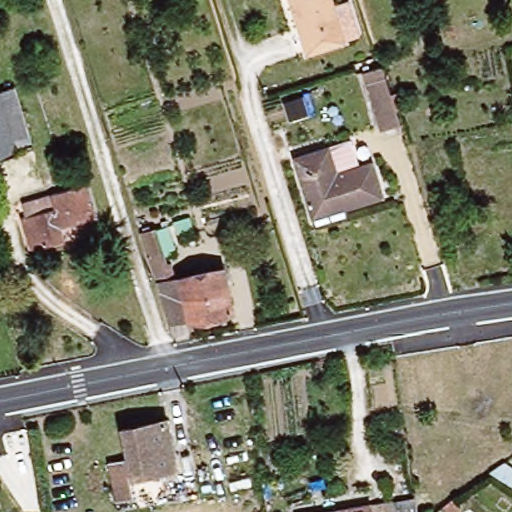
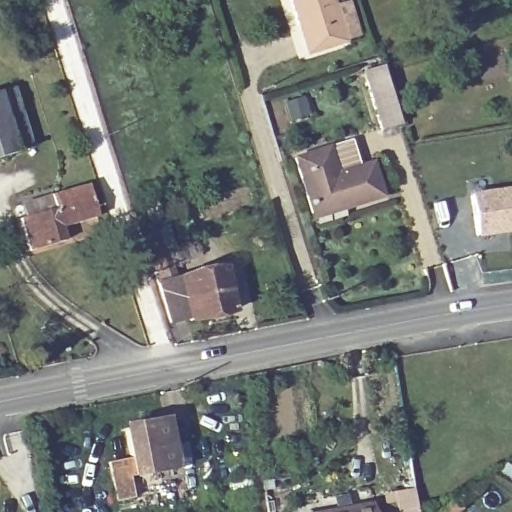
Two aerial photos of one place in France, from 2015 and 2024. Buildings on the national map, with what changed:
unchanged [(307,35),(300,37),(290,0),(327,0),(340,42),(312,51),(307,35)]
unchanged [(402,125),(380,132),(365,80),(387,75),(402,125)]
unchanged [(0,154),(0,90),(13,86),(34,144),(0,154)]
unchanged [(334,172),(369,162),(379,198),(340,212),(336,201),(310,210),(294,157),(326,145),(334,172)]
unchanged [(62,225),(65,240),(29,250),(21,219),(54,209),(50,194),(86,184),(95,215),(62,225)]
new [(512,188),(512,232),(476,238),(469,194),(512,188)]
unchanged [(169,265),(154,270),(144,234),(149,232),(149,227),(156,225),(169,265)]
unchanged [(190,321),(189,317),(172,321),(161,283),(224,269),(234,311),(190,321)]
unchanged [(105,463),(131,457),(127,431),(165,423),(174,469),(132,477),(136,498),(114,503),(105,463)]
unchanged [(369,505),(392,502),(392,494),(410,491),(414,512),(324,512),(369,505)]
unchanged [(461,512),(442,512),(459,501),(465,509),(461,512)]

